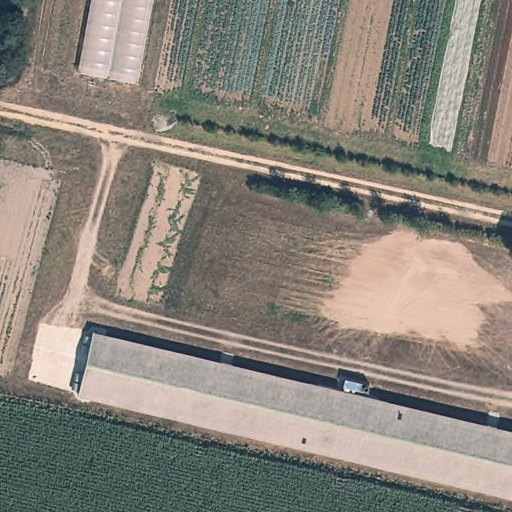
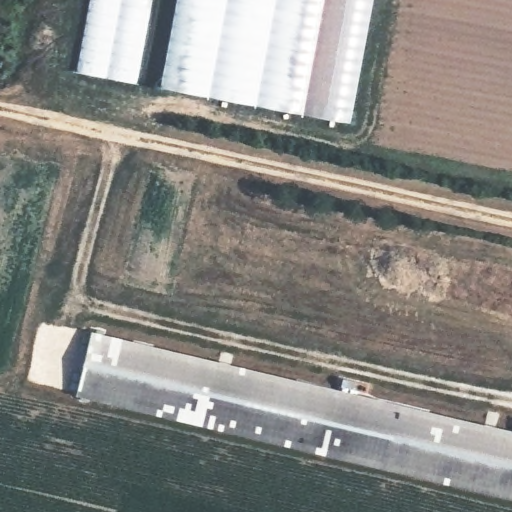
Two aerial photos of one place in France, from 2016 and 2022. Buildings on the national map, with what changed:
new [(369,0),(346,127),(157,92),(174,0),(369,0)]
unchanged [(512,499),(73,392),(87,336),(512,439),(512,499)]

